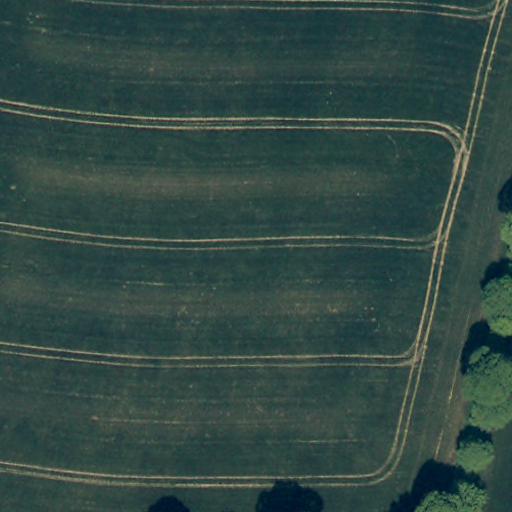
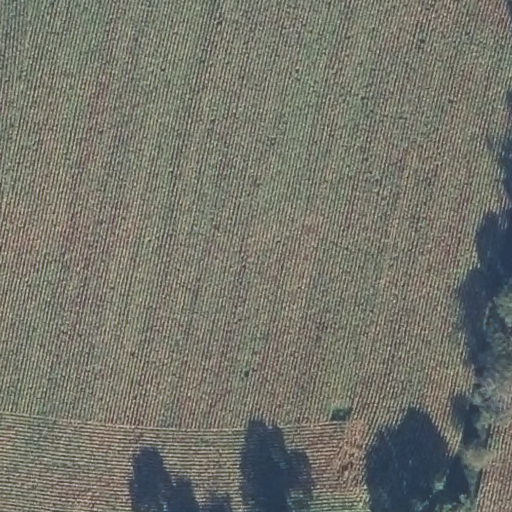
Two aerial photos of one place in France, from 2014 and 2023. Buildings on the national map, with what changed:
[]

